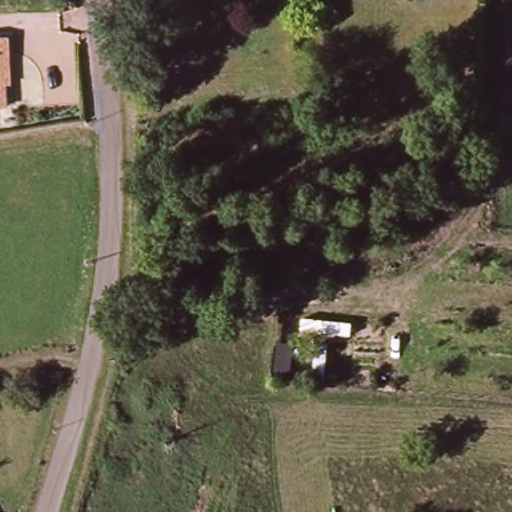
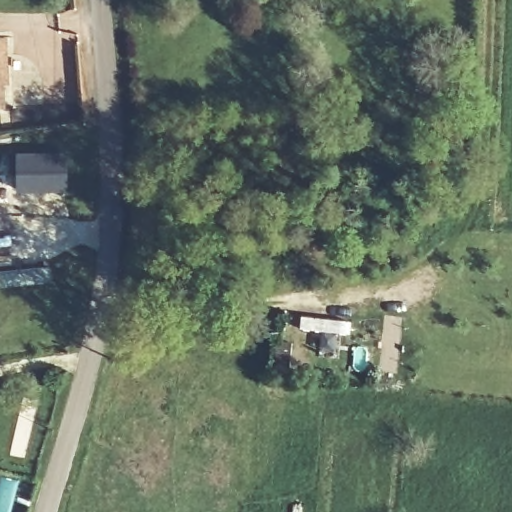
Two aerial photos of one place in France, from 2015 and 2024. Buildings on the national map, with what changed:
unchanged [(0,112),(0,40),(7,40),(7,58),(9,84),(2,85),(2,112),(0,112)]
new [(14,151),(68,150),(68,193),(14,192),(14,151)]

